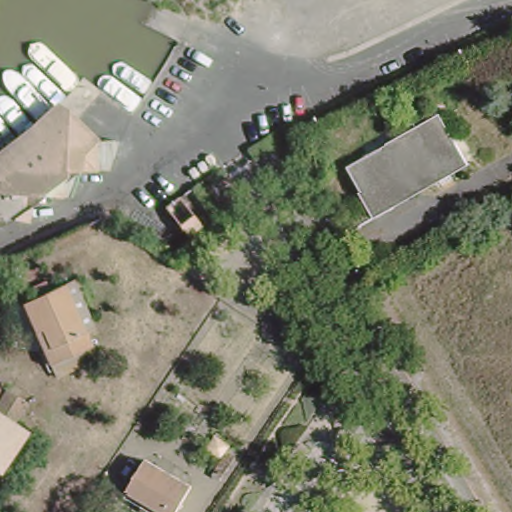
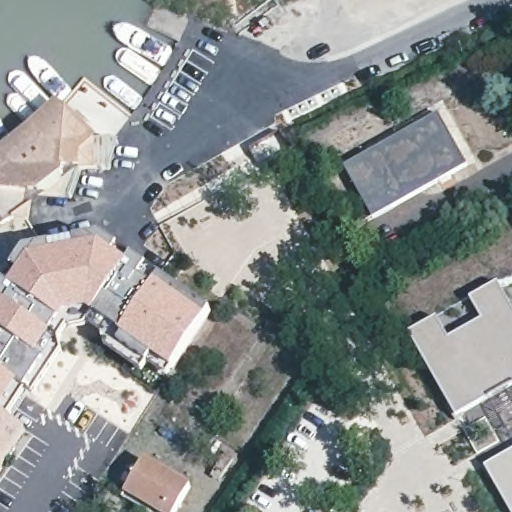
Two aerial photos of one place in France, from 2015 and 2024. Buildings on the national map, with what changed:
unchanged [(90,130),(90,135),(115,131),(120,134),(112,160),(83,164),(73,192),(35,192),(29,213),(15,213),(0,222),(0,163),(10,155),(40,133),(67,105),(90,130)]
unchanged [(345,165),(430,118),(458,170),(372,219),(345,165)]
new [(169,379),(149,365),(144,374),(105,347),(104,335),(90,327),(87,330),(72,333),(69,329),(59,344),(63,354),(33,398),(25,393),(7,419),(27,433),(1,474),(0,477),(0,304),(0,303),(0,292),(5,285),(11,289),(20,276),(12,270),(25,253),(76,244),(103,239),(126,255),(121,263),(128,267),(133,259),(155,274),(147,286),(154,289),(161,279),(210,313),(173,370),(169,379)]
demolished [(78,349),(50,362),(24,301),(65,284),(87,334),(91,345),(78,349)]
new [(456,417),(410,334),(437,320),(449,340),(483,322),(470,299),(499,284),(512,306),(512,385),(456,417)]
demolished [(10,399),(27,409),(18,424),(27,429),(0,468),(0,414),(3,416),(10,399)]
new [(512,449),(512,512),(508,512),(482,467),(512,449)]
unchanged [(145,462),(187,488),(171,512),(150,512),(123,494),(145,462)]

